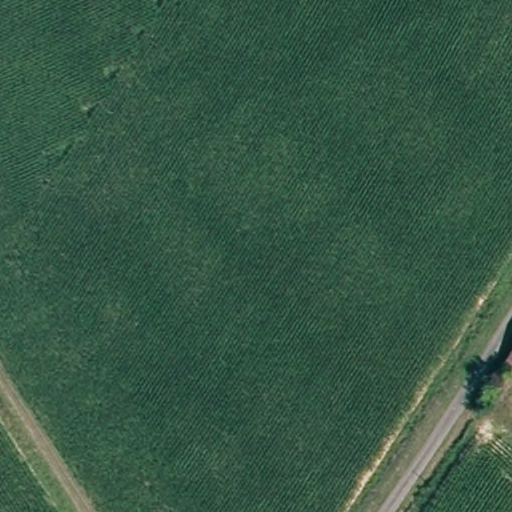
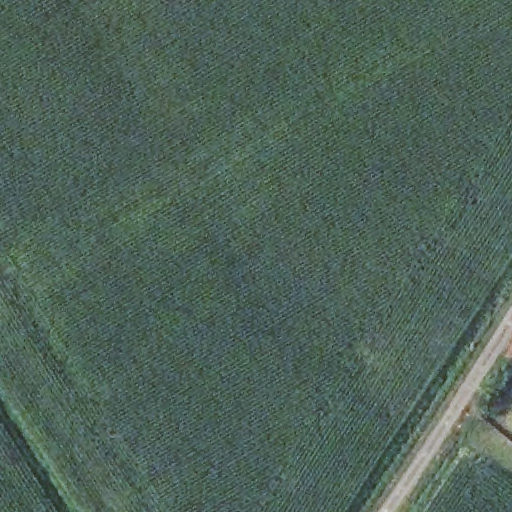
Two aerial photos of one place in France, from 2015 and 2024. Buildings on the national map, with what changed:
unchanged [(512,345),(512,357),(507,353),(512,345)]

